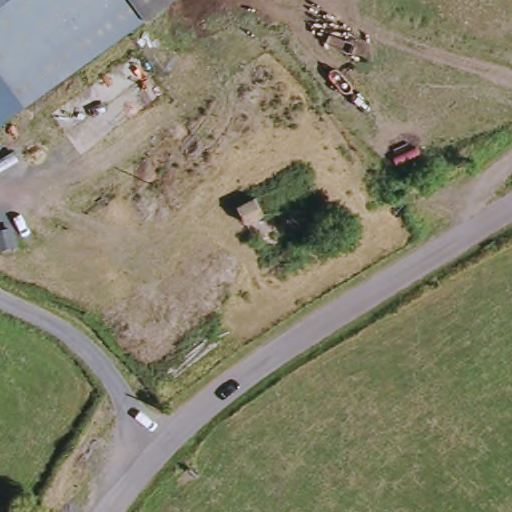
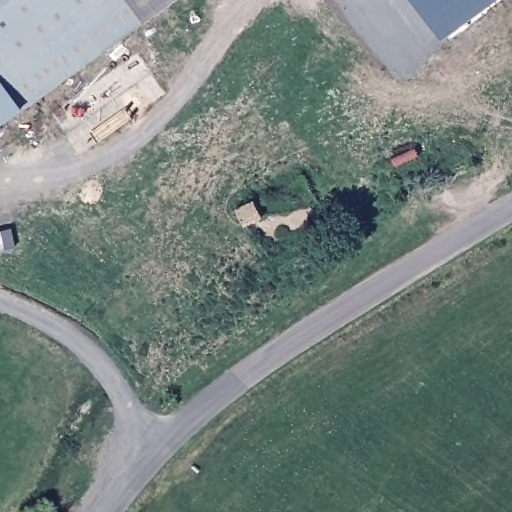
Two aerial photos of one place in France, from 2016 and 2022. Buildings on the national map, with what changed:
unchanged [(168,0),(0,130),(0,0),(168,0)]
new [(420,0),(506,0),(448,41),(420,0)]
unchanged [(271,210),(244,228),(235,209),(262,192),(271,210)]

